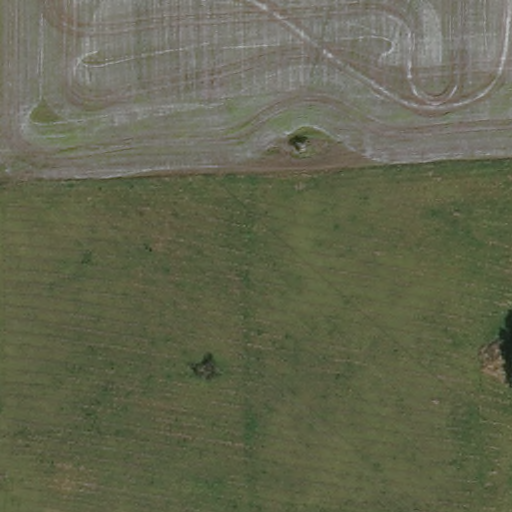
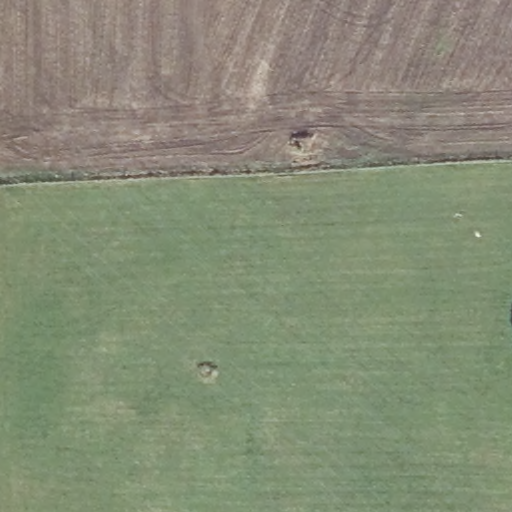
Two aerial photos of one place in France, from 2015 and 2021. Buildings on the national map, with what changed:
[]

